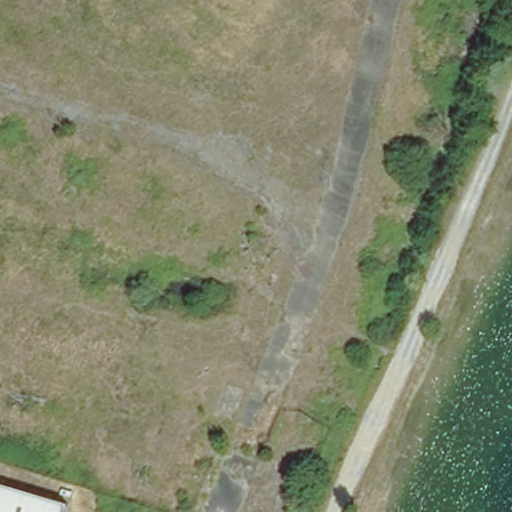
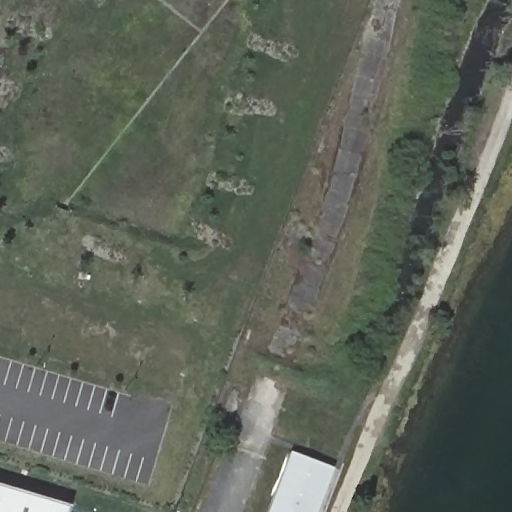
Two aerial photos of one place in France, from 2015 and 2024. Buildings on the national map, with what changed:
new [(307,456),(332,466),(314,512),(265,512),(288,449),(307,456)]
unchanged [(56,512),(0,512),(0,483),(59,501),(56,512)]

